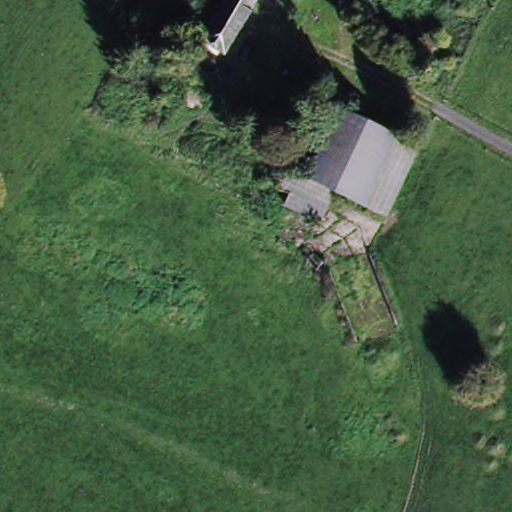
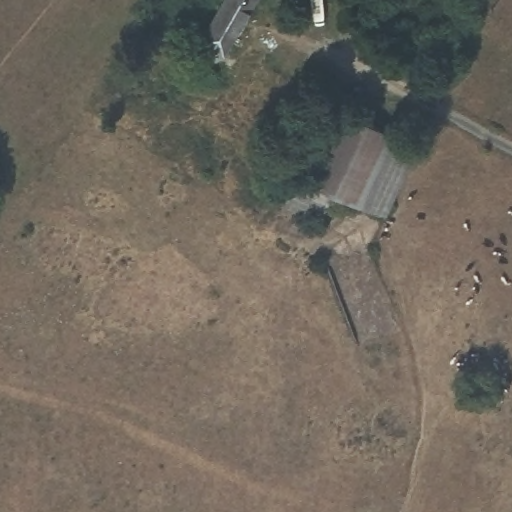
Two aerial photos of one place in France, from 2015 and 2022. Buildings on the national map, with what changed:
unchanged [(206,32),(226,0),(255,0),(228,44),(206,32)]
unchanged [(339,108),(379,126),(347,196),(336,191),(307,178),(339,108)]
unchanged [(418,146),(384,214),(347,196),(379,126),(418,146)]
unchanged [(327,209),(280,187),(288,169),(307,178),(336,191),(327,209)]

